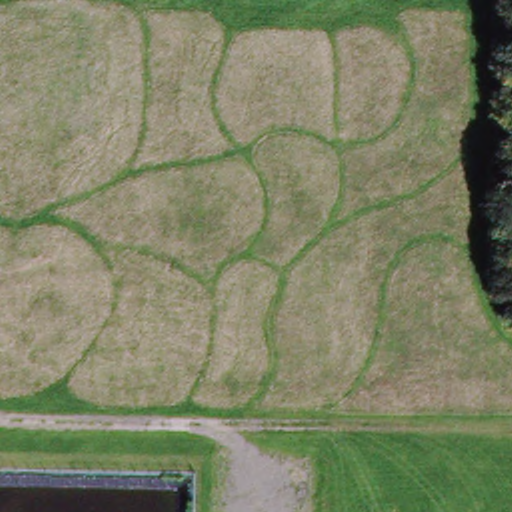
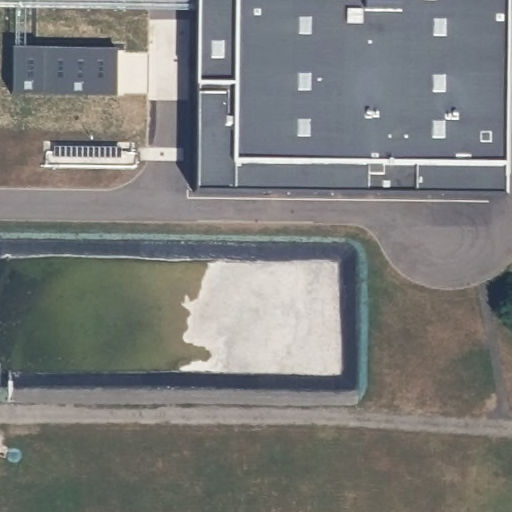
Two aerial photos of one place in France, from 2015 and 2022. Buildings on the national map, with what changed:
new [(196,191),(197,0),(507,0),(507,197),(196,191)]

